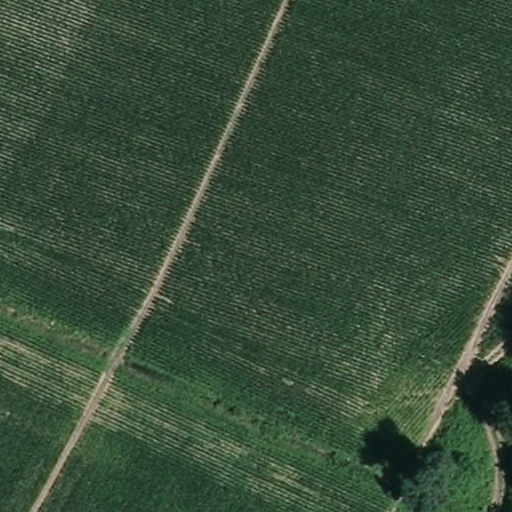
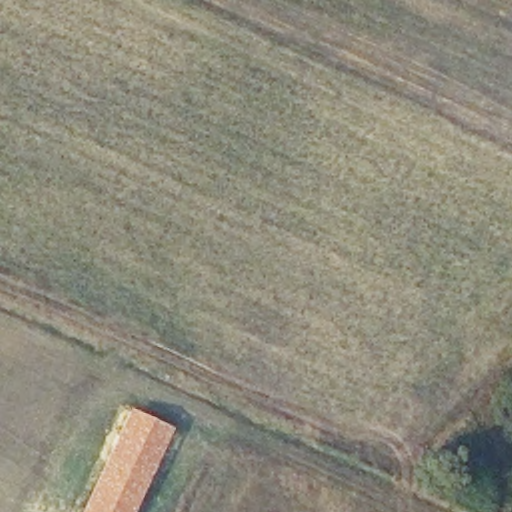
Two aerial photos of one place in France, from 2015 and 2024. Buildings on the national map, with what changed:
new [(174,428),(135,512),(80,512),(129,407),(174,428)]

